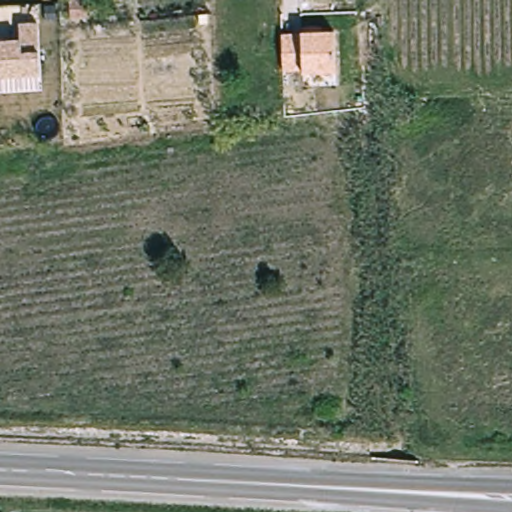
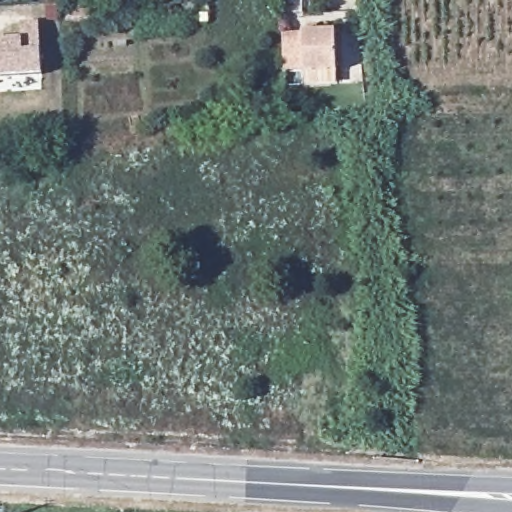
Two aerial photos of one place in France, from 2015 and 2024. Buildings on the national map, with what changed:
unchanged [(84,0),(86,16),(71,16),(70,1),(84,0)]
unchanged [(21,40),(21,22),(37,24),(40,52),(42,76),(0,79),(0,41),(21,40)]
unchanged [(333,32),(336,75),(304,75),(304,69),(285,71),(284,35),(305,34),(333,32)]

